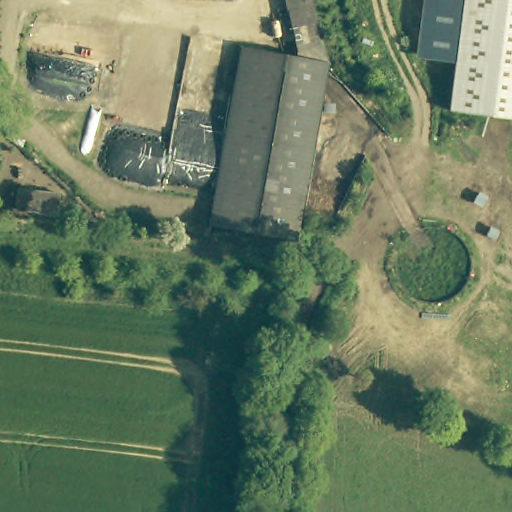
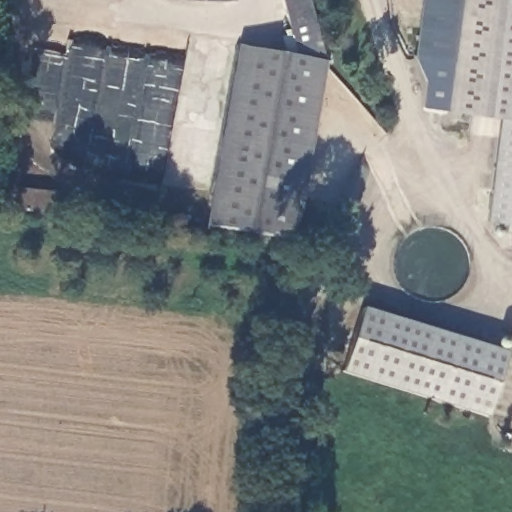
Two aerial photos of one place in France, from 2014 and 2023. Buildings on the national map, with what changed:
unchanged [(319,52),(320,62),(292,60),(291,52),(284,0),(312,0),(319,52)]
unchanged [(460,36),(455,62),(416,57),(422,0),(468,0),(460,36)]
unchanged [(460,36),(468,0),(512,0),(512,122),(484,116),(445,108),(449,90),(460,36)]
unchanged [(292,60),(320,62),(308,208),(219,202),(231,56),(292,60)]
new [(512,122),(512,224),(487,222),(500,120),(512,122)]
unchanged [(16,212),(18,188),(59,191),(59,215),(16,212)]
new [(489,418),(343,373),(365,307),(509,352),(489,418)]

